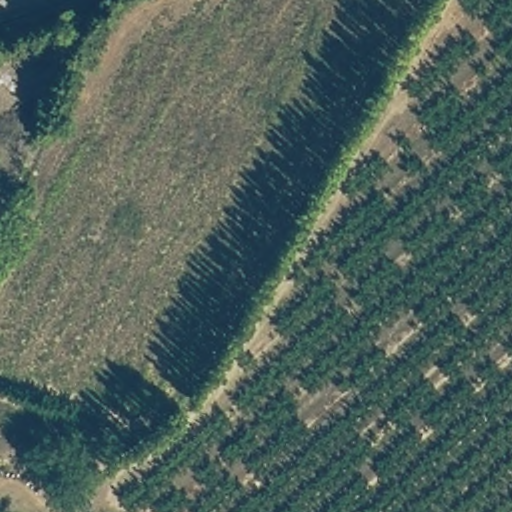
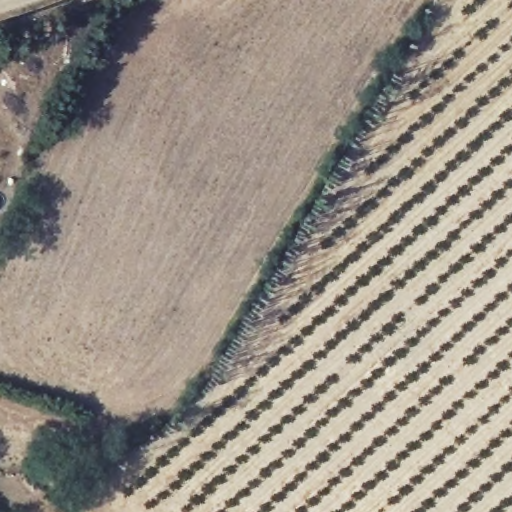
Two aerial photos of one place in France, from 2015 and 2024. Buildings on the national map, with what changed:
[]

